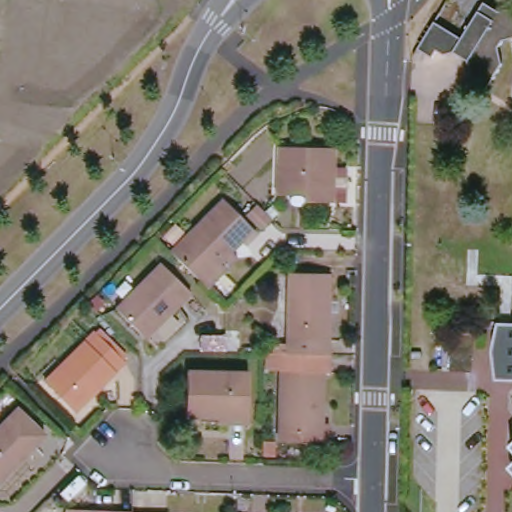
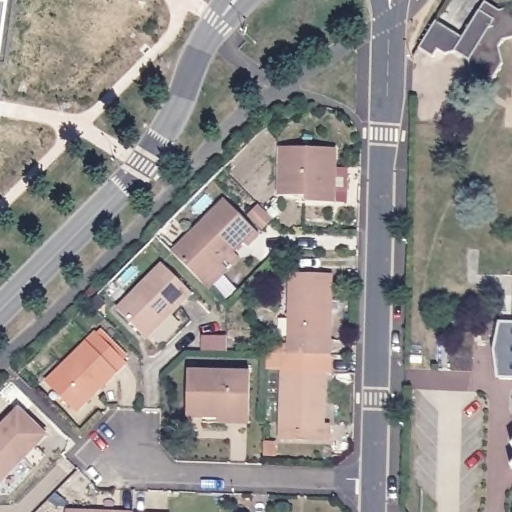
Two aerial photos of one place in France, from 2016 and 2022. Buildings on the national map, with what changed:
new [(0,51),(0,0),(7,0),(0,51)]
unchanged [(437,17),(464,36),(488,1),(502,11),(512,9),(512,40),(505,42),(502,46),(504,63),(486,90),(474,81),(469,60),(456,50),(446,52),(439,47),(434,55),(420,45),(426,35),(437,17)]
unchanged [(305,197),(277,196),(278,149),(332,150),(332,172),(335,173),(334,204),(305,204),(305,197)]
unchanged [(175,251),(227,200),(260,233),(250,243),(247,239),(237,248),(244,256),(212,288),(205,281),(175,251)]
unchanged [(274,220),(267,227),(252,214),(260,206),(274,220)]
unchanged [(334,346),(330,347),(305,346),(302,346),(293,346),(294,330),(296,265),(337,266),(335,331),(334,346)]
unchanged [(145,338),(121,313),(165,268),(194,297),(174,317),(149,341),(145,338)]
unchanged [(473,331),(472,371),(450,371),(452,330),(473,331)]
unchanged [(100,336),(104,332),(134,361),(130,366),(80,416),(50,386),(100,336)]
unchanged [(293,346),(302,346),(305,346),(330,347),(329,432),(333,431),(334,447),(286,446),(290,346),(293,346)]
unchanged [(189,419),(190,375),(252,375),(252,416),(220,415),(220,420),(189,419)]
unchanged [(0,485),(0,433),(22,412),(49,440),(23,465),(2,486),(0,485)]
unchanged [(278,437),(277,447),(269,446),(270,437),(278,437)]
unchanged [(512,443),(512,445),(511,444),(512,443)]
unchanged [(512,464),(512,467),(510,465),(512,464)]

